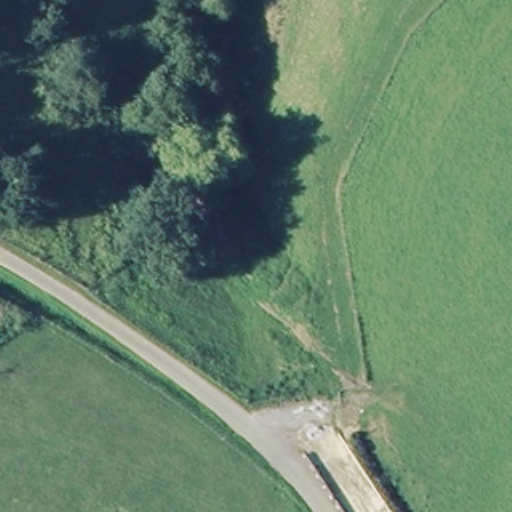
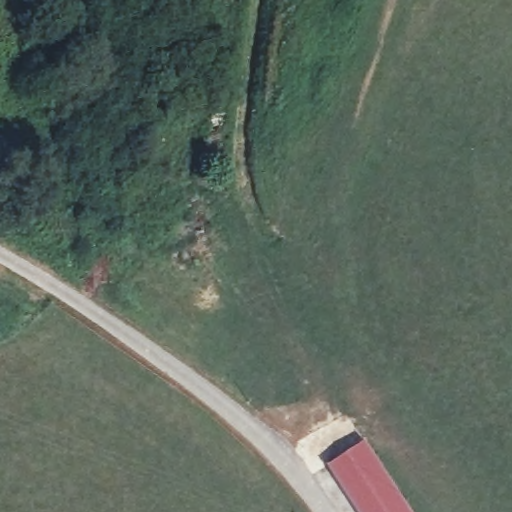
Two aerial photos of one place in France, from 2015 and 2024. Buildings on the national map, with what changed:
new [(364,439),(412,512),(357,512),(325,464),(364,439)]

